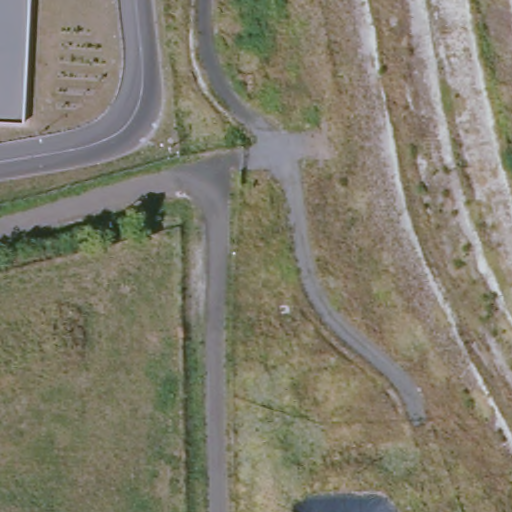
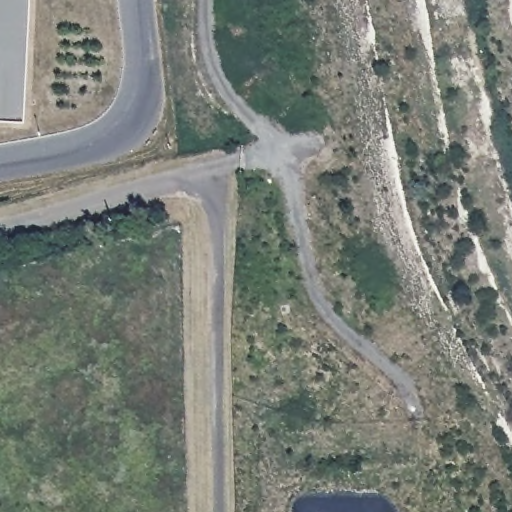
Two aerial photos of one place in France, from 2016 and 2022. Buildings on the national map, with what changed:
unchanged [(24,123),(0,122),(0,0),(30,0),(24,123)]

